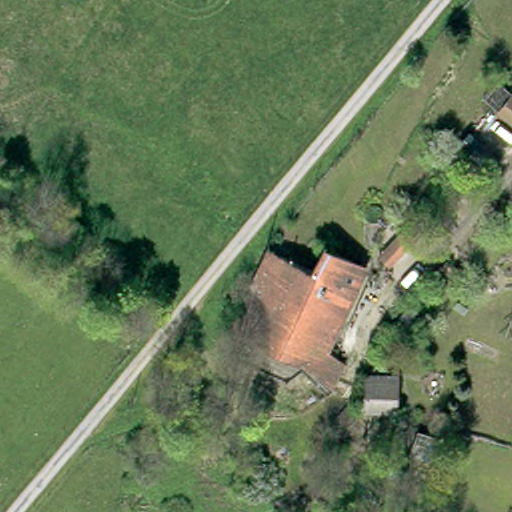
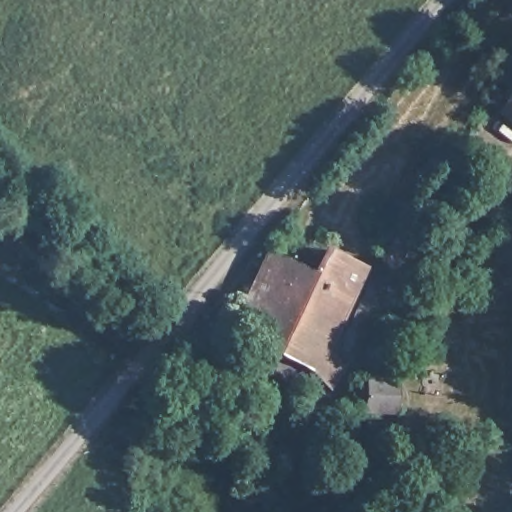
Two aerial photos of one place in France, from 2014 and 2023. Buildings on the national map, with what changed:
unchanged [(507,86),(512,90),(512,128),(489,111),(507,86)]
unchanged [(339,357),(327,381),(231,333),(266,254),(311,270),(321,255),(359,270),(321,349),(339,357)]
unchanged [(364,376),(399,380),(393,411),(361,409),(364,376)]

